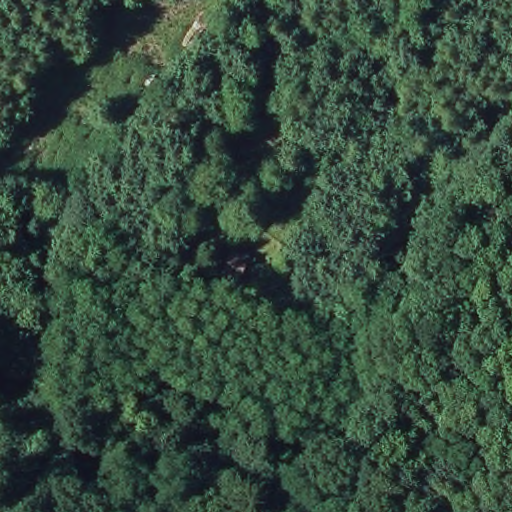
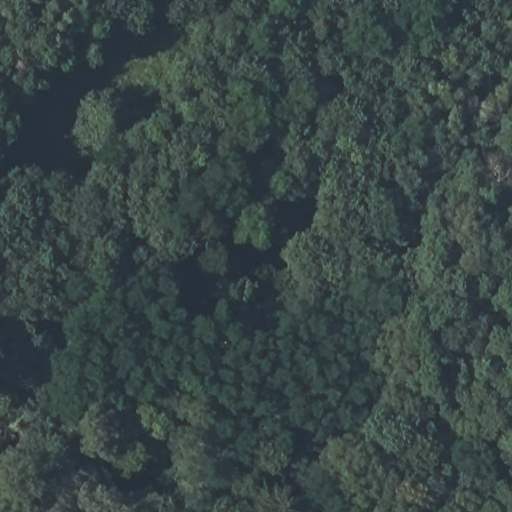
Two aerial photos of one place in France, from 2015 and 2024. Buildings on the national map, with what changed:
unchanged [(245,267),(236,288),(218,282),(228,260),(245,267)]

